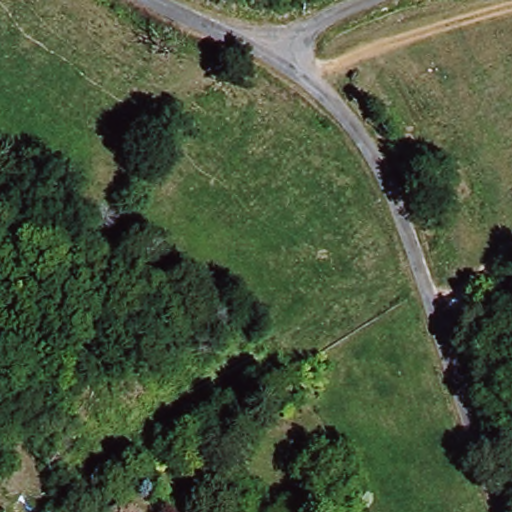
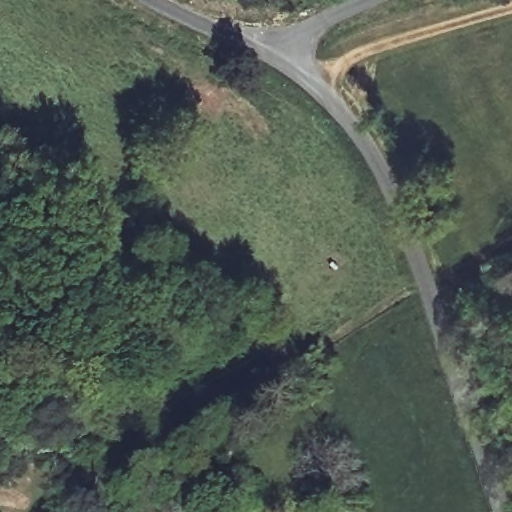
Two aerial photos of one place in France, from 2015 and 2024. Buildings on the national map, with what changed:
[]

